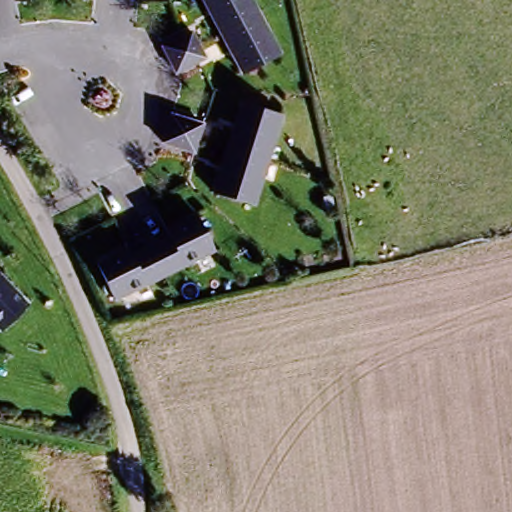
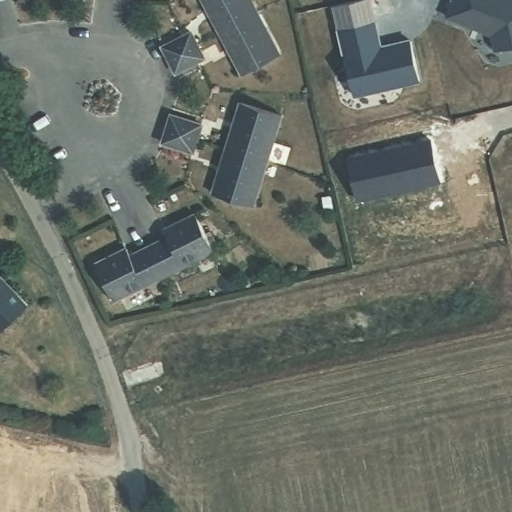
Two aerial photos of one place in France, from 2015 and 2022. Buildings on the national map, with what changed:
unchanged [(251,0),(257,11),(220,30),(204,0),(251,0)]
new [(497,0),(512,6),(512,54),(496,58),(492,43),(447,24),(456,0),(497,0)]
new [(367,4),(378,55),(409,48),(418,89),(352,104),(332,13),(367,4)]
unchanged [(257,11),(280,54),(242,73),(220,30),(257,11)]
unchanged [(182,71),(172,46),(192,38),(203,63),(182,71)]
unchanged [(237,111),(280,124),(268,163),(226,150),(237,111)]
unchanged [(199,139),(193,156),(166,149),(174,121),(203,128),(199,139)]
new [(347,161),(428,143),(440,182),(357,203),(347,161)]
unchanged [(256,204),(214,193),(226,150),(268,163),(256,204)]
unchanged [(147,240),(195,219),(213,259),(166,281),(147,240)]
unchanged [(120,302),(102,260),(147,240),(166,281),(120,302)]
unchanged [(25,309),(0,332),(0,282),(25,309)]

